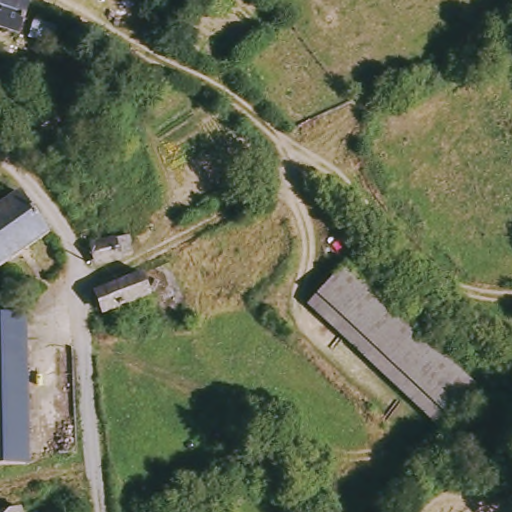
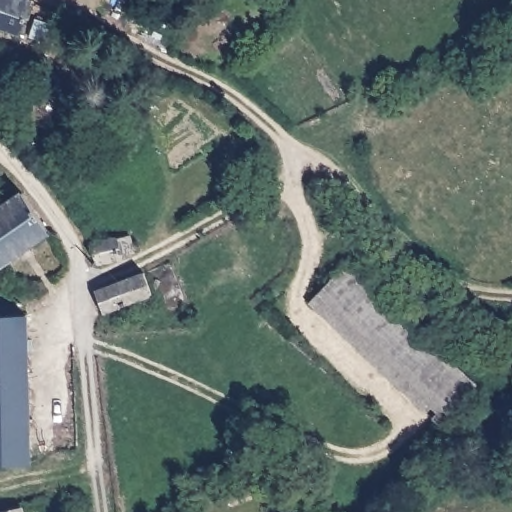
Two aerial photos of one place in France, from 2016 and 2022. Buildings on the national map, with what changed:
unchanged [(32,15),(65,27),(61,47),(26,34),(0,26),(0,0),(37,0),(39,0),(32,15)]
unchanged [(0,67),(2,65),(15,86),(11,90),(31,124),(20,131),(0,95),(0,67)]
unchanged [(6,266),(0,258),(0,214),(26,195),(52,235),(6,266)]
unchanged [(139,249),(131,249),(132,256),(100,262),(96,241),(104,239),(137,240),(139,249)]
unchanged [(202,301),(182,315),(161,289),(149,265),(162,256),(174,255),(202,301)]
unchanged [(161,289),(114,308),(107,291),(149,265),(161,289)]
unchanged [(480,389),(442,426),(320,302),(359,265),(480,389)]
unchanged [(39,460),(0,462),(0,314),(32,313),(39,460)]
unchanged [(26,512),(0,512),(0,509),(24,502),(26,512)]

